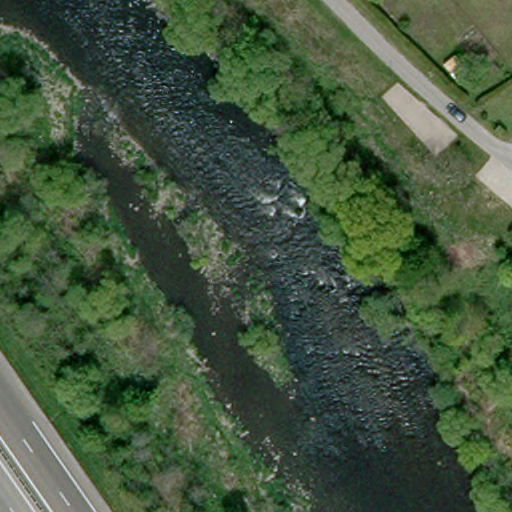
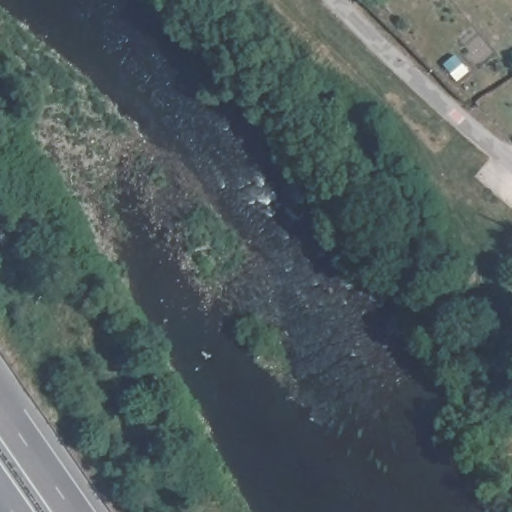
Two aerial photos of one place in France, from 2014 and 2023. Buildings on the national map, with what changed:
unchanged [(445,69),(456,58),(464,66),(453,77),(445,69)]

